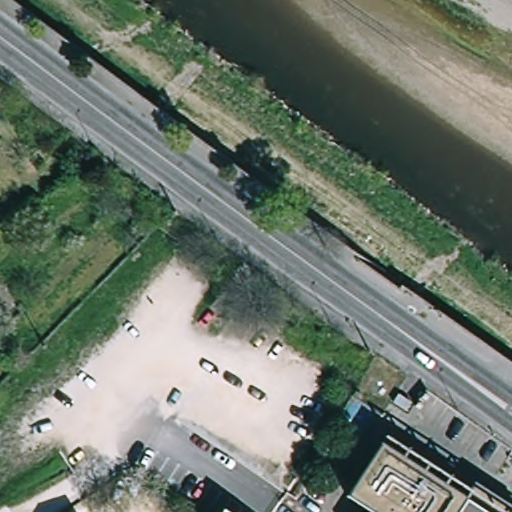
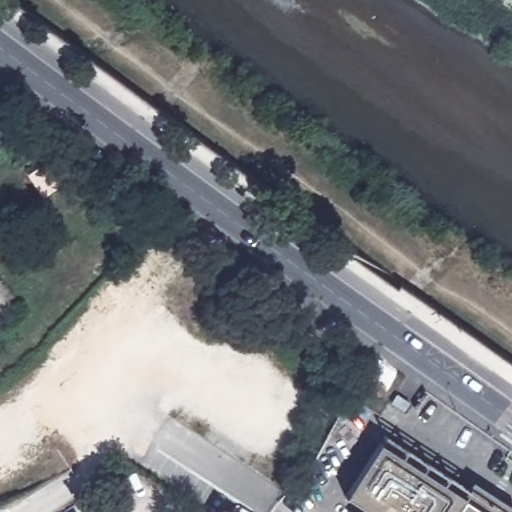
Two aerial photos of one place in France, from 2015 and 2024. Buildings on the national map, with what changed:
unchanged [(388,405),(381,415),(349,396),(362,373),(394,395),(388,405)]
unchanged [(388,435),(482,496),(472,512),(371,512),(348,496),(388,435)]
unchanged [(485,490),(512,507),(512,508),(509,512),(472,512),(482,496),(485,490)]
unchanged [(228,512),(223,512),(224,510),(228,512)]

